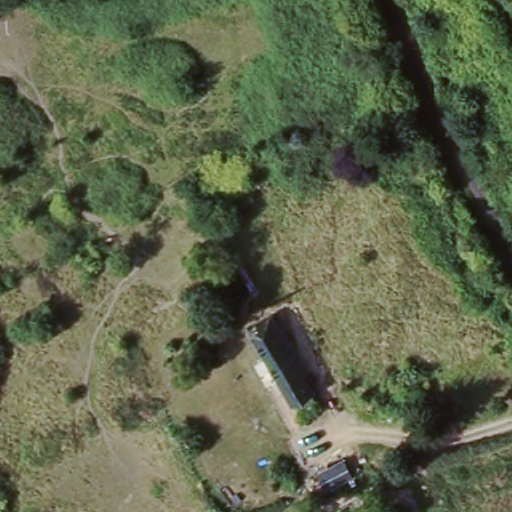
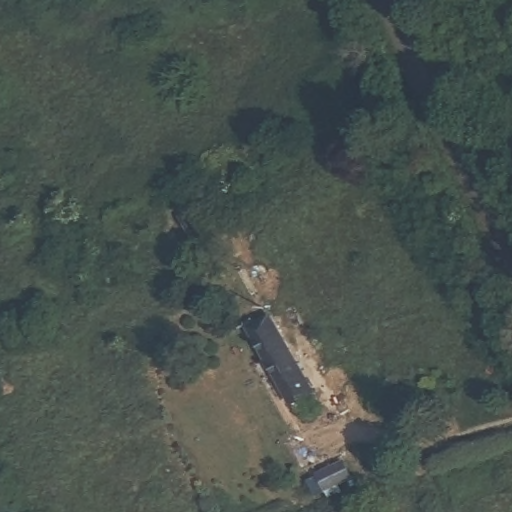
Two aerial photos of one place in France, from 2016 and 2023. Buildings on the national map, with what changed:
unchanged [(290,408),(257,341),(250,328),(259,324),(272,318),(277,327),(304,376),(314,397),(290,408)]
unchanged [(338,465),(348,485),(325,496),(317,475),(338,465)]

